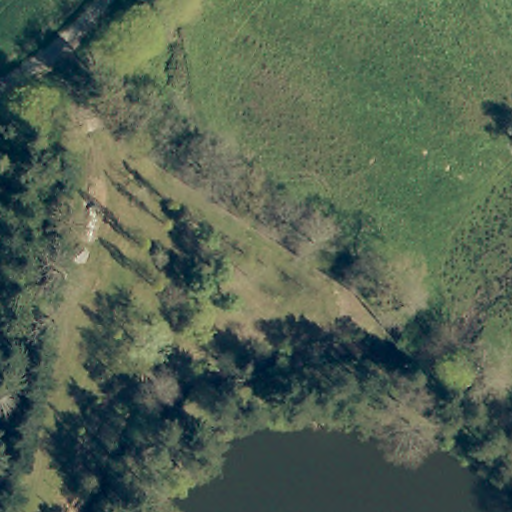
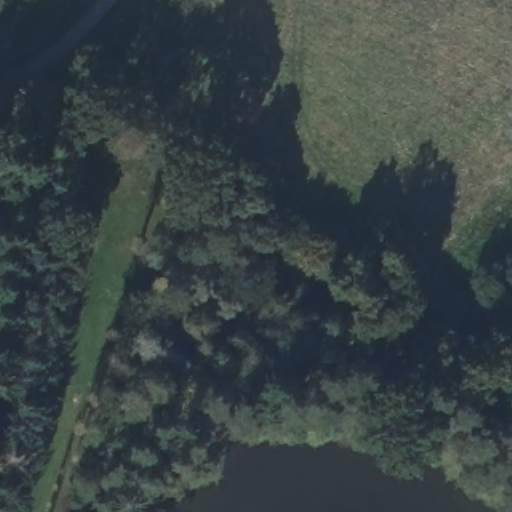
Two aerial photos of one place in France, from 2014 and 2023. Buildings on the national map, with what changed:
[]

